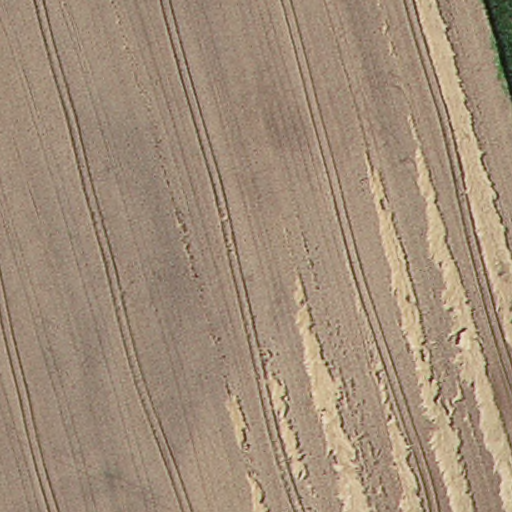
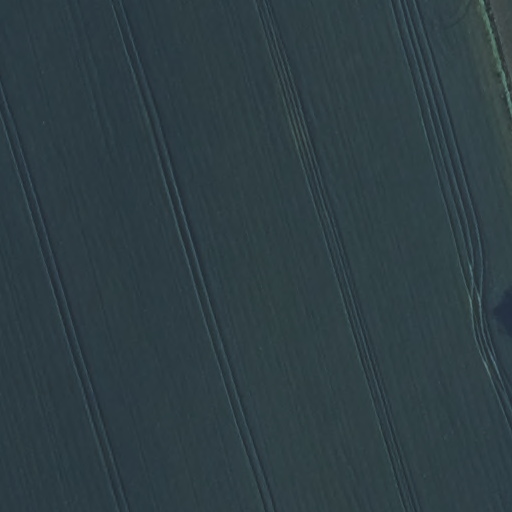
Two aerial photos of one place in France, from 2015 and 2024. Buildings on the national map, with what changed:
[]

